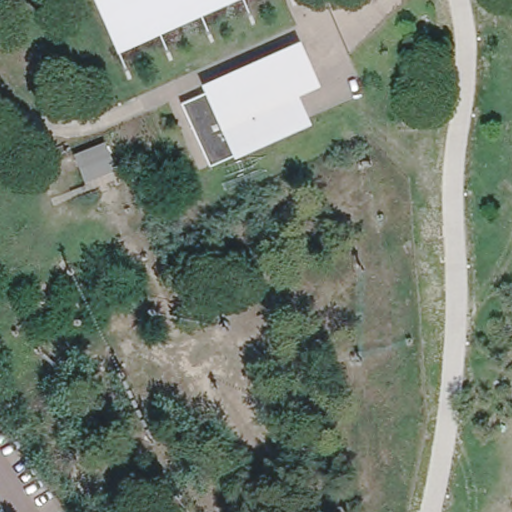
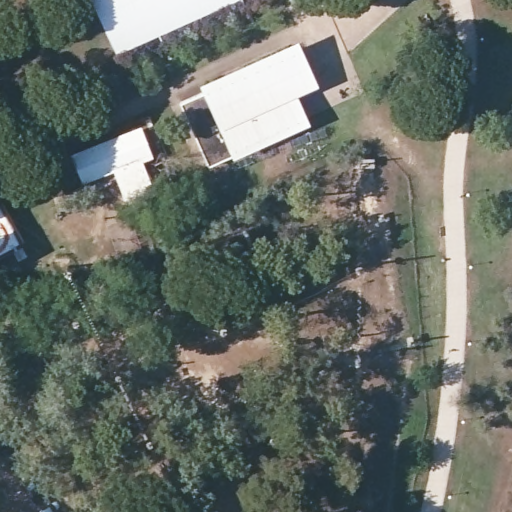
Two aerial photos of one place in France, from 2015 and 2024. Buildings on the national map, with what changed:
unchanged [(118,49),(96,0),(230,0),(118,49)]
unchanged [(321,84),(303,94),(312,122),(236,155),(232,149),(211,159),(185,100),(204,90),(203,80),(297,38),(321,84)]
new [(151,184),(123,193),(114,171),(84,182),(73,153),(143,126),(154,156),(143,161),(151,184)]

